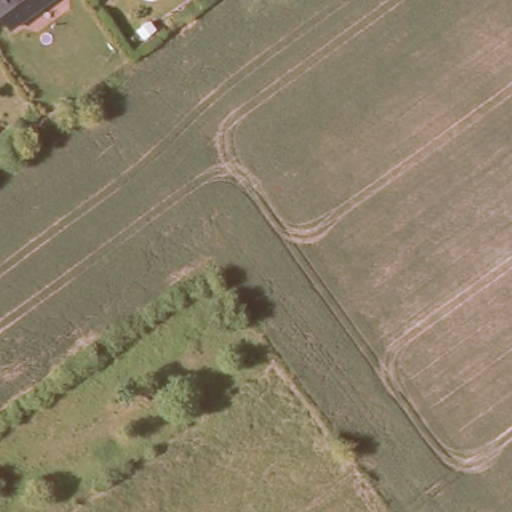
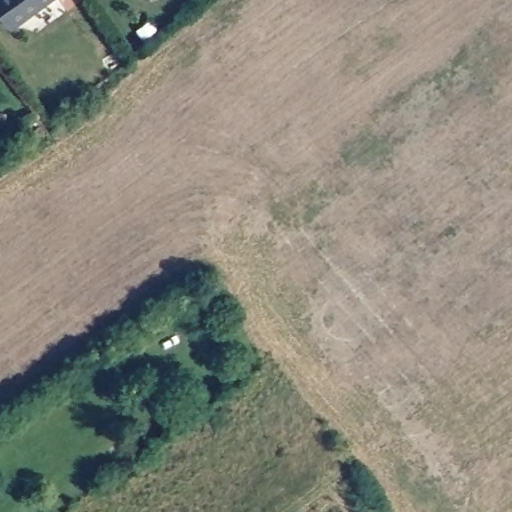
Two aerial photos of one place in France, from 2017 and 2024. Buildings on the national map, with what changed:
unchanged [(0,11),(0,0),(56,0),(12,30),(0,11)]

